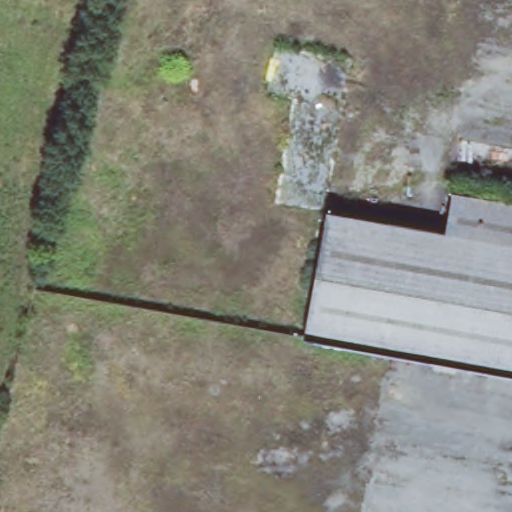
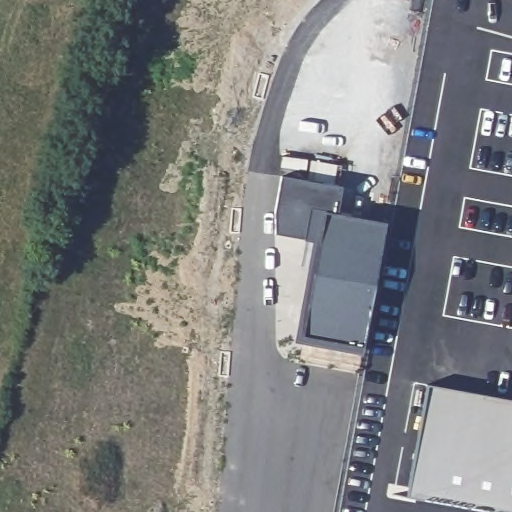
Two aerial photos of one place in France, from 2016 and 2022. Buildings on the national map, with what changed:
demolished [(277,194),(293,98),(266,94),(276,45),(356,60),(329,202),(277,194)]
new [(362,356),(295,342),(312,241),(277,235),(276,213),(282,178),(341,189),(337,216),(384,223),(362,356)]
demolished [(325,211),(444,230),(451,190),(512,201),(512,369),(301,334),(325,211)]
new [(512,401),(512,507),(408,489),(426,385),(512,401)]
new [(512,507),(512,512),(479,512),(406,499),(408,489),(512,507)]

